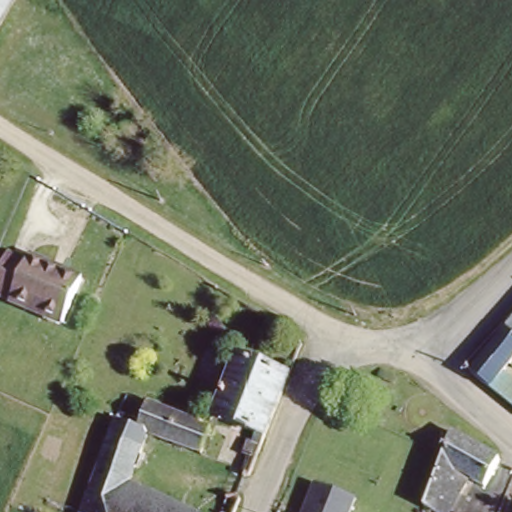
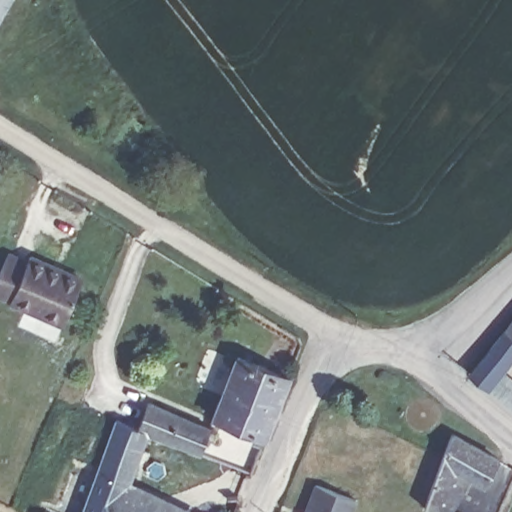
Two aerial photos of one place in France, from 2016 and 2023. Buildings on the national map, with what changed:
unchanged [(0,23),(0,0),(14,0),(5,15),(0,23)]
unchanged [(25,260),(54,273),(78,283),(58,327),(0,302),(0,267),(4,257),(23,265),(25,260)]
unchanged [(493,393),(473,378),(512,329),(512,368),(507,375),(493,393)]
unchanged [(289,375),(251,475),(241,471),(248,455),(242,453),(248,440),(251,441),(254,432),(214,417),(238,355),(289,375)]
unchanged [(512,380),(512,408),(493,393),(507,375),(512,380)]
unchanged [(211,425),(201,451),(151,431),(126,494),(119,512),(85,512),(82,511),(118,418),(128,422),(131,415),(141,418),(148,400),(211,425)]
unchanged [(457,432),(504,460),(489,487),(474,478),(455,512),(440,512),(429,506),(448,456),(457,432)]
unchanged [(356,499),(351,512),(305,512),(316,483),(356,499)]
unchanged [(126,494),(163,512),(119,512),(126,494)]
unchanged [(82,511),(85,512),(82,512),(82,511)]

